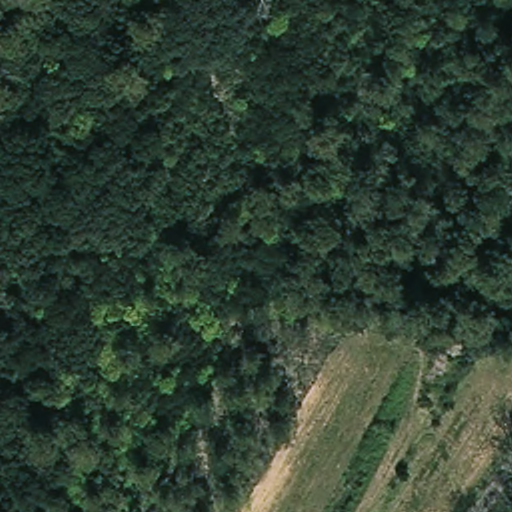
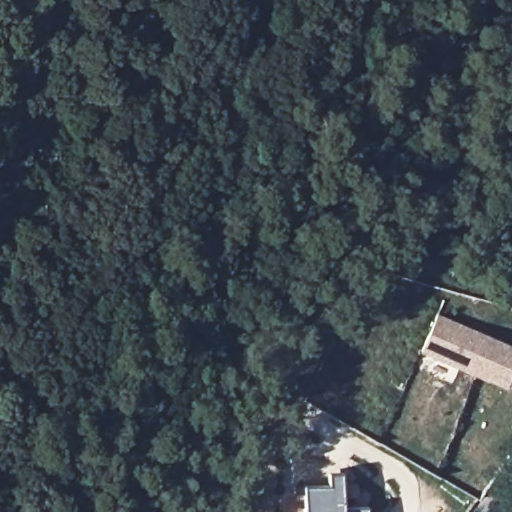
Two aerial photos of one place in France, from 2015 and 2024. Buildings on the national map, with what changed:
new [(436,314),(512,345),(512,365),(503,386),(421,351),(436,314)]
new [(299,487),(330,487),(330,474),(342,474),(342,486),(359,485),(360,496),(362,492),(373,497),(366,509),(367,509),(368,512),(307,512),(306,499),(299,500),(299,487)]

